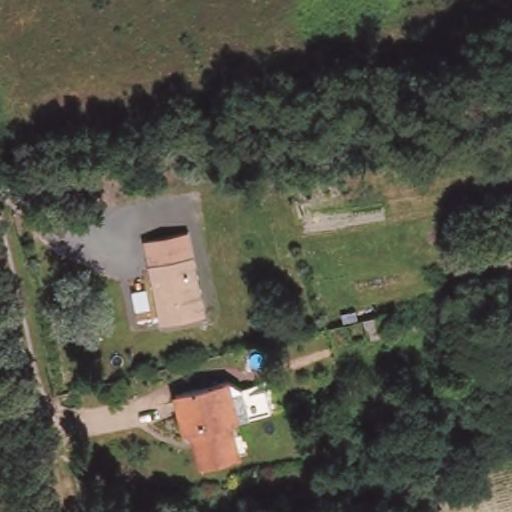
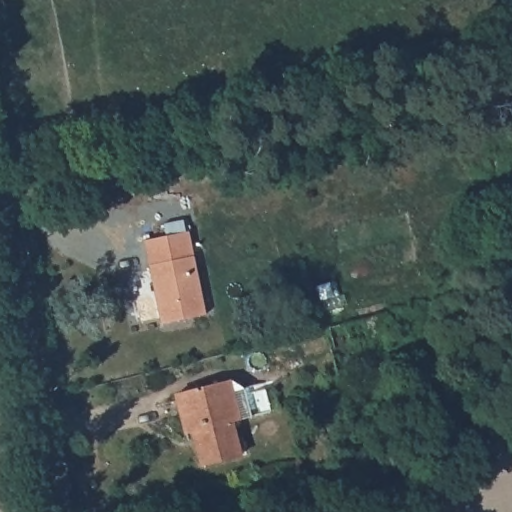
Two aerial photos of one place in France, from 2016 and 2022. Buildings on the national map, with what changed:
unchanged [(185,231),(206,320),(162,330),(144,241),(185,231)]
unchanged [(230,377),(242,385),(263,380),(270,409),(230,419),(238,452),(201,461),(192,429),(186,430),(175,391),(230,377)]

